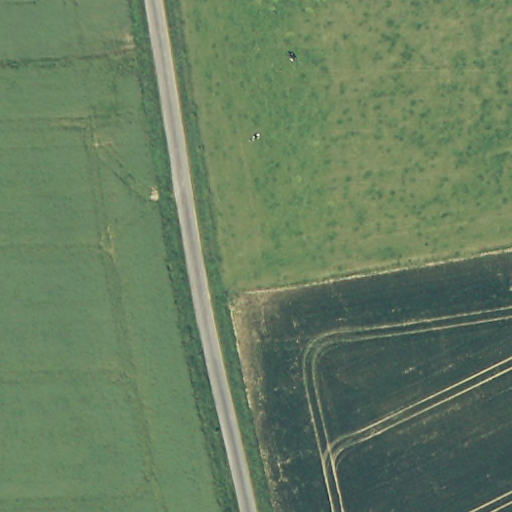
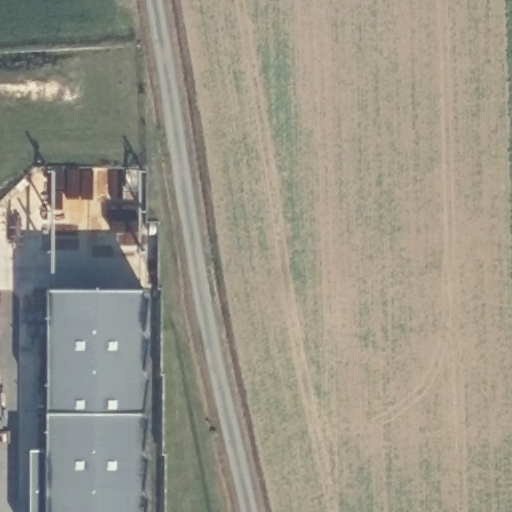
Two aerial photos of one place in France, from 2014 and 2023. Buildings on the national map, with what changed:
new [(146,301),(141,331),(148,339),(141,372),(147,381),(142,411),(147,420),(142,453),(147,458),(142,493),(147,500),(145,512),(30,512),(28,450),(45,452),(46,408),(46,290),(140,290),(146,301)]

